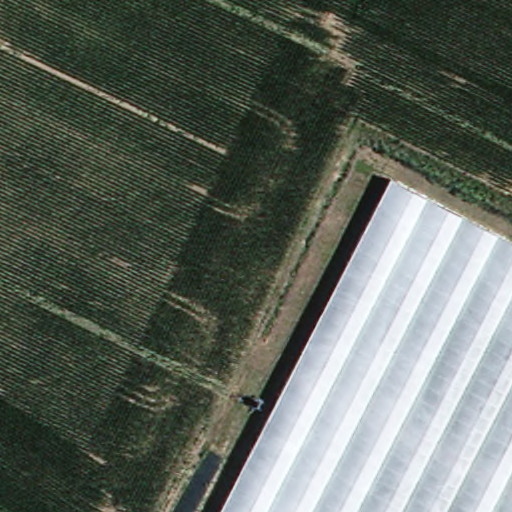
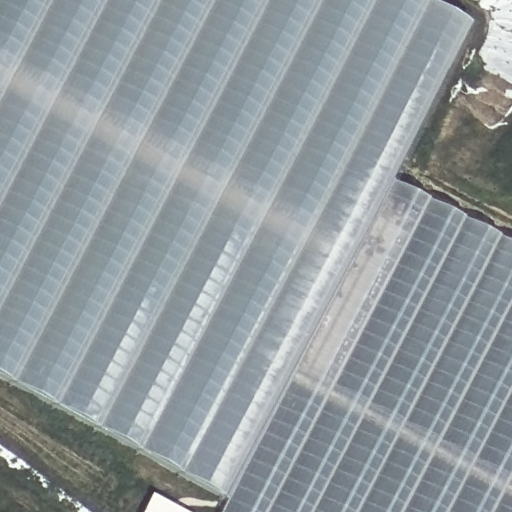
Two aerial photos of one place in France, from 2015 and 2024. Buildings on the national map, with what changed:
new [(475,25),(391,182),(223,501),(0,383),(0,0),(430,0),(475,25)]
unchanged [(512,243),(512,512),(219,512),(391,182),(512,243)]

